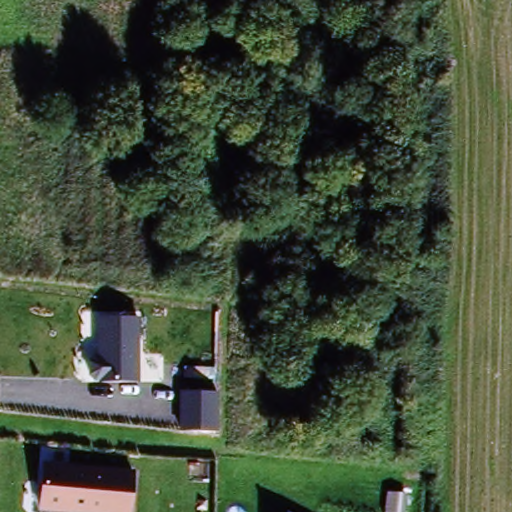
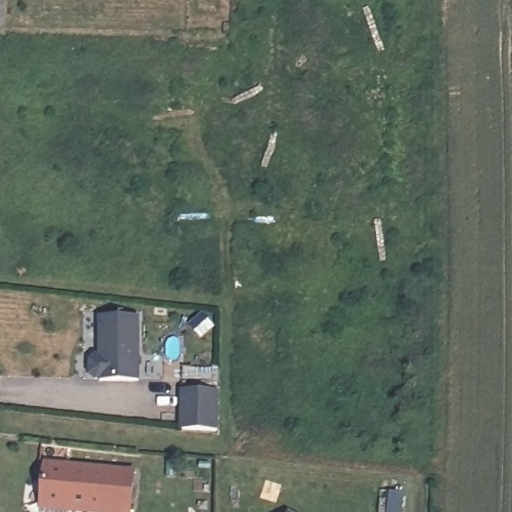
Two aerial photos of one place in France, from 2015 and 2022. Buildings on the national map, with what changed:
unchanged [(96,382),(90,375),(90,359),(98,352),(99,317),(138,316),(139,381),(96,382)]
unchanged [(181,390),(219,391),(218,431),(180,428),(181,390)]
unchanged [(135,471),(132,512),(51,512),(40,511),(43,462),(135,471)]

